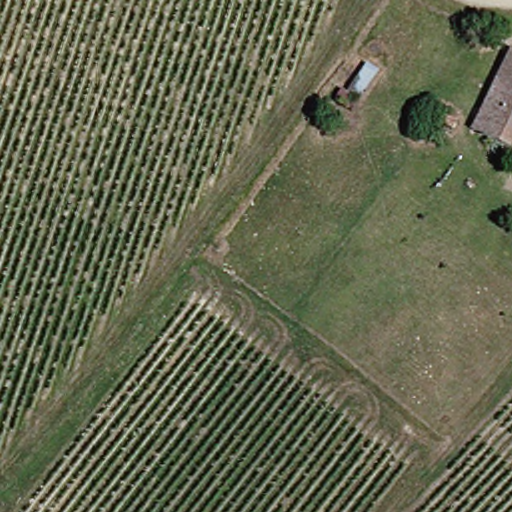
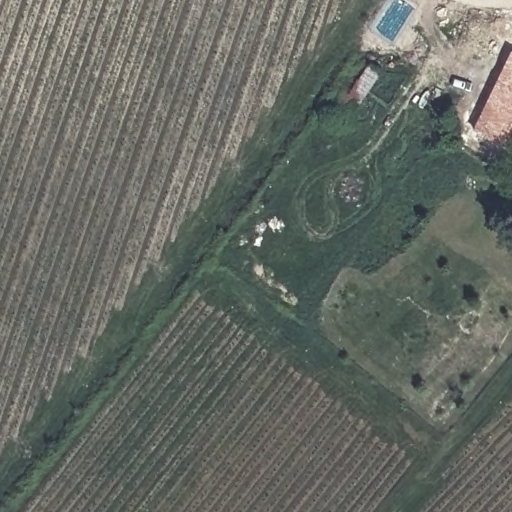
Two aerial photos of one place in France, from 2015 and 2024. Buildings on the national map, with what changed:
unchanged [(468,118),(507,49),(512,53),(512,123),(502,141),(468,118)]

